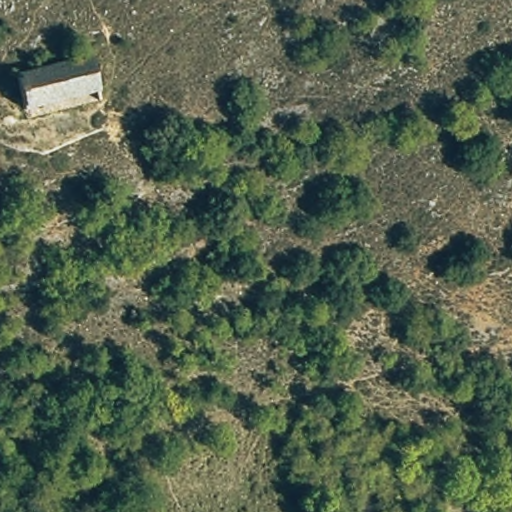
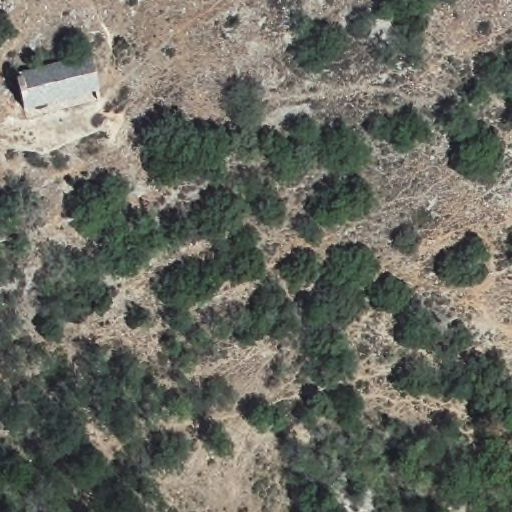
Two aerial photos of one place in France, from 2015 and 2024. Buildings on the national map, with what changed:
unchanged [(27,108),(15,71),(89,49),(100,90),(27,108)]

